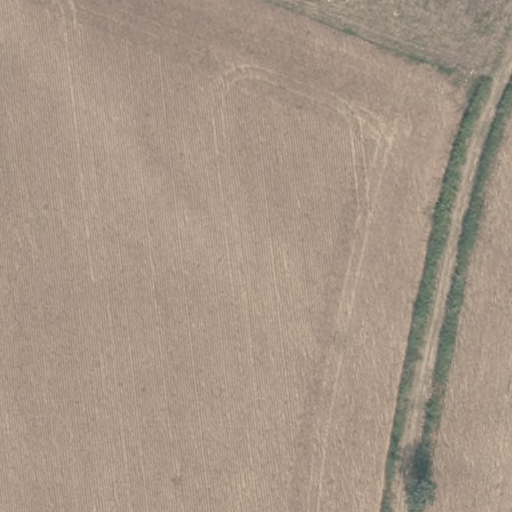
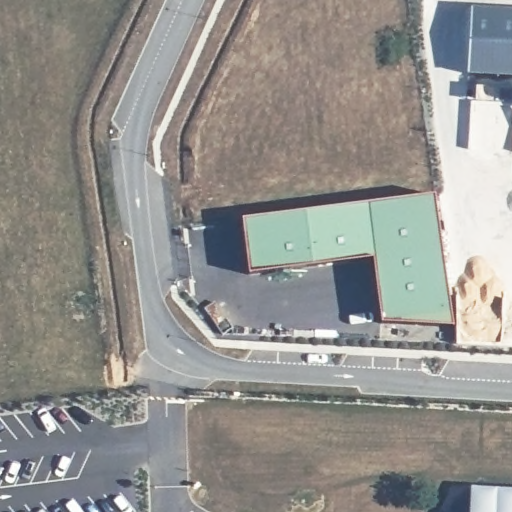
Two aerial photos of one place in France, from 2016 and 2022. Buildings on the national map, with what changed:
new [(472,7),(512,10),(512,77),(468,74),(472,7)]
new [(454,326),(382,323),(373,260),(249,275),(242,218),(436,195),(454,326)]
new [(512,490),(512,512),(470,512),(471,488),(512,490)]

